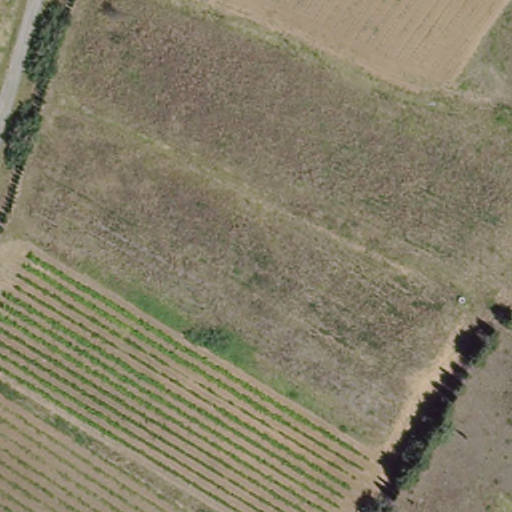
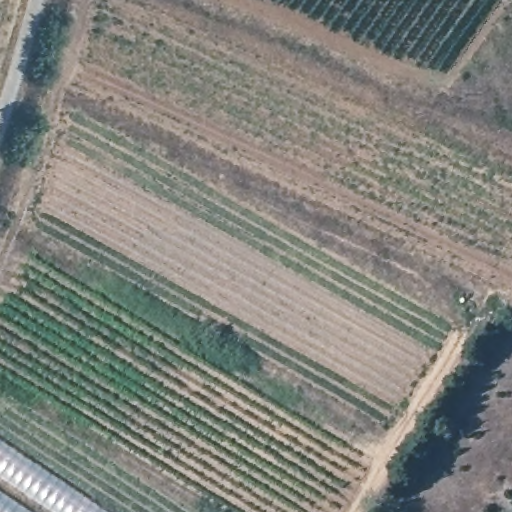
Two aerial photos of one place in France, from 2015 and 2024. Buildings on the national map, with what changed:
new [(102,512),(48,512),(0,479),(0,444),(102,512)]
new [(26,512),(0,512),(0,495),(26,512)]

